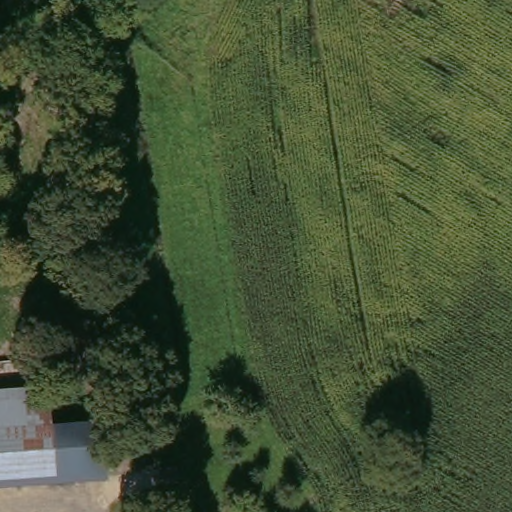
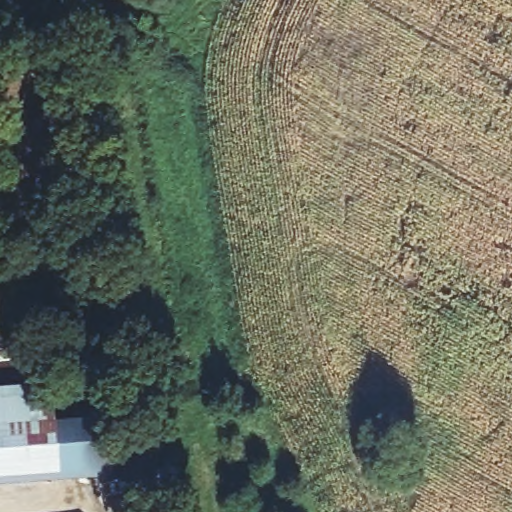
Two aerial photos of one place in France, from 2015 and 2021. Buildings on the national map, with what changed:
unchanged [(59,418),(107,416),(114,478),(0,487),(0,388),(50,384),(59,418)]

